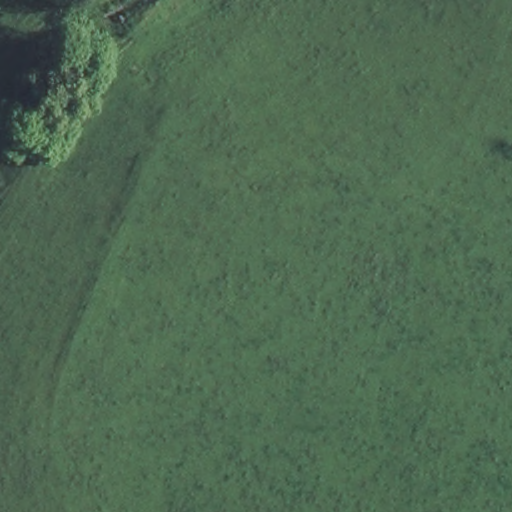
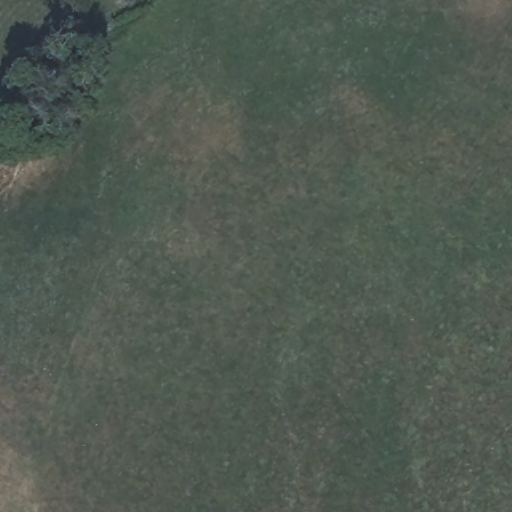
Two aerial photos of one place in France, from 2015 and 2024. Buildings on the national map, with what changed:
[]

